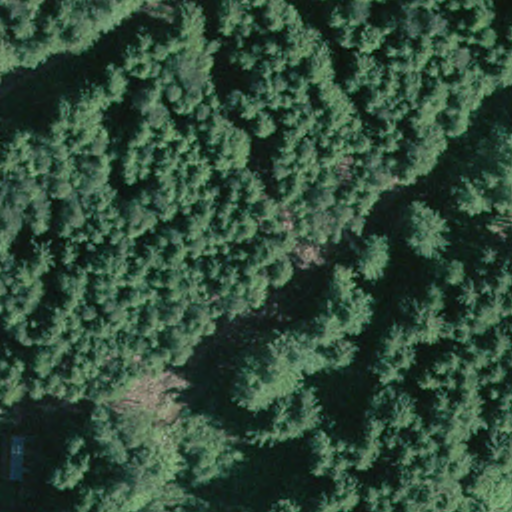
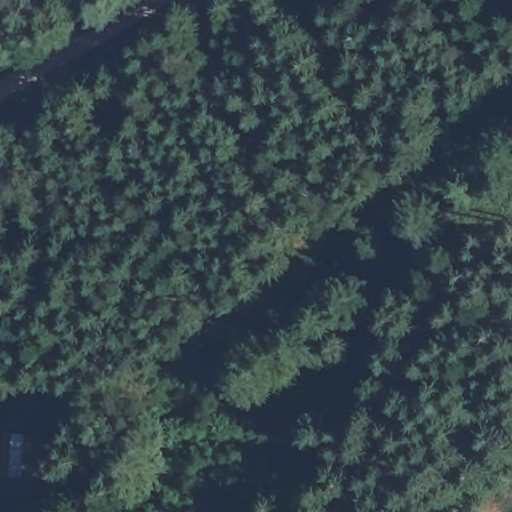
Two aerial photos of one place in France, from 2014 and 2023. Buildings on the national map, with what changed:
unchanged [(5,428),(35,430),(35,474),(2,465),(5,428)]

